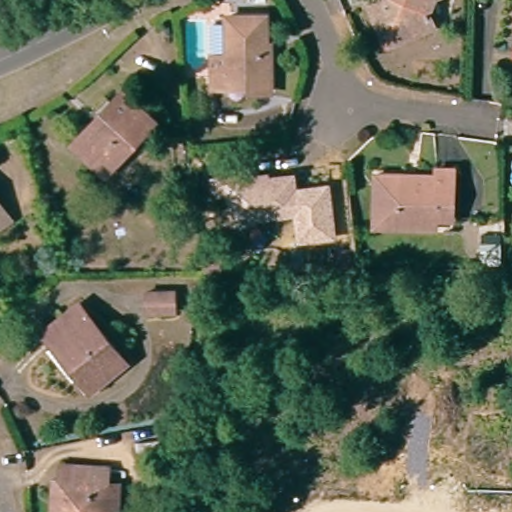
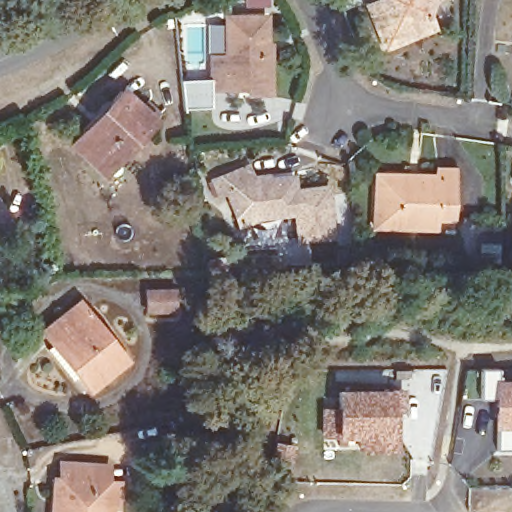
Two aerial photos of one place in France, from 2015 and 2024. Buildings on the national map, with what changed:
unchanged [(391,41),(375,0),(429,0),(438,21),(391,41)]
unchanged [(211,52),(228,50),(224,12),(263,9),(267,45),(271,45),(275,81),(253,84),(250,72),(230,75),(231,82),(213,84),(211,52)]
unchanged [(99,164),(78,146),(90,131),(94,134),(113,109),(110,106),(121,91),(143,110),(149,102),(161,113),(155,120),(123,161),(112,175),(99,164)]
unchanged [(401,222),(373,220),(377,167),(417,168),(417,175),(423,176),(430,169),(442,169),(442,161),(455,162),(455,186),(454,212),(438,211),(437,224),(401,222)]
unchanged [(251,162),(257,178),(297,172),(303,212),(260,217),(261,221),(253,222),(237,189),(228,192),(220,176),(251,162)]
unchanged [(330,183),(337,241),(296,247),(291,213),(303,212),(299,186),(330,183)]
unchanged [(0,216),(0,203),(6,212),(0,216)]
unchanged [(104,385),(89,367),(81,374),(55,345),(63,338),(53,327),(87,297),(137,355),(104,385)]
unchanged [(166,297),(193,297),(193,319),(165,319),(166,297)]
new [(490,368),(490,384),(512,384),(512,426),(508,427),(508,451),(489,451),(489,400),(472,400),(472,368),(490,368)]
new [(358,436),(337,437),(319,437),(319,405),(335,405),(335,387),(391,387),(404,386),(404,411),(396,411),(396,418),(399,418),(399,452),(358,452),(358,436)]
unchanged [(52,476),(59,476),(60,459),(96,460),(96,477),(118,477),(117,501),(106,501),(105,512),(51,512),(52,476)]

